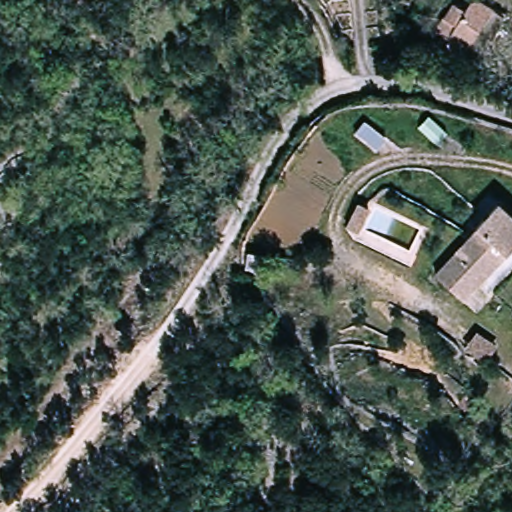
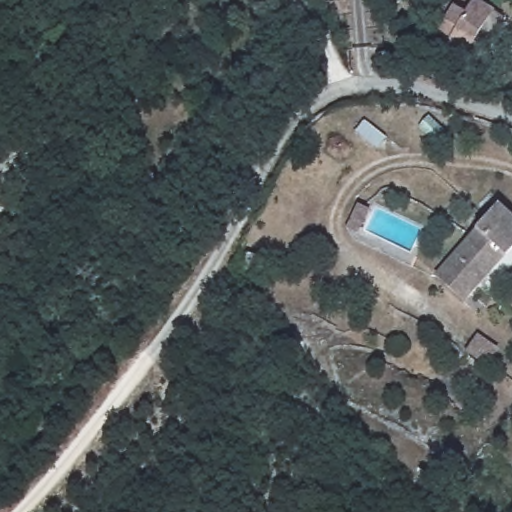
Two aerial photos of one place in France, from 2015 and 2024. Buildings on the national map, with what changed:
unchanged [(474,59),(463,51),(456,63),(436,45),(443,38),(435,30),(453,5),(465,14),(473,0),(490,13),(501,20),(474,59)]
unchanged [(470,229),(491,206),(512,225),(512,266),(506,273),(495,263),(456,304),(430,279),(472,233),(470,229)]

